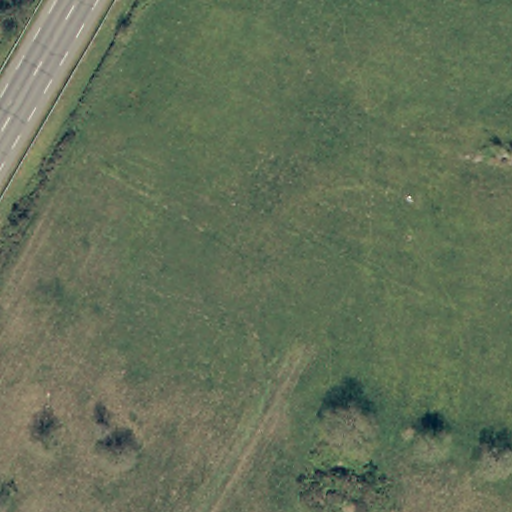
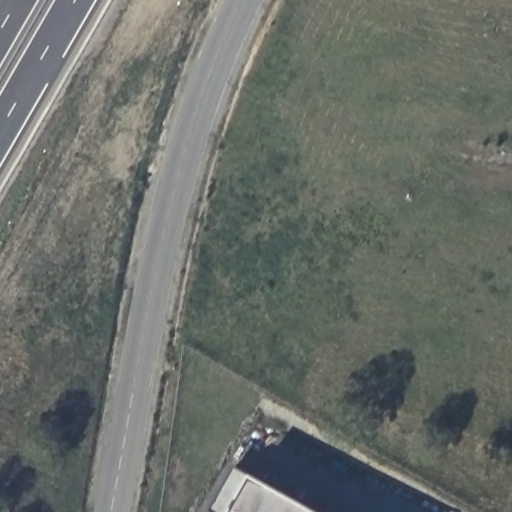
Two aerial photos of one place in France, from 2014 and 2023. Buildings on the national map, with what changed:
new [(235,467),(252,475),(317,512),(211,512),(235,467)]

